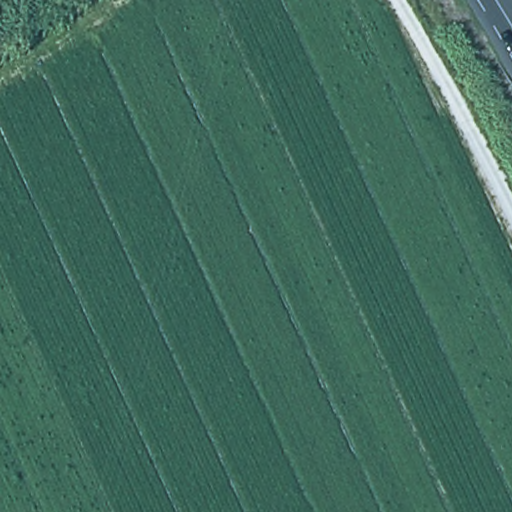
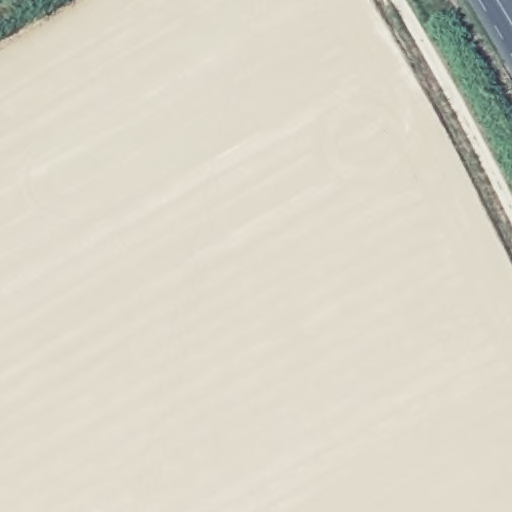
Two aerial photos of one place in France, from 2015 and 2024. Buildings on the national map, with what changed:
[]

